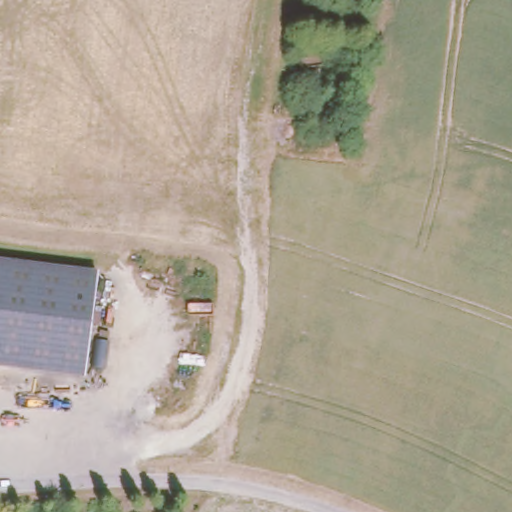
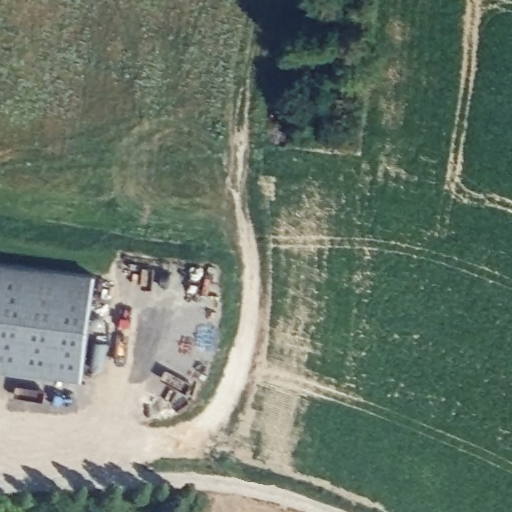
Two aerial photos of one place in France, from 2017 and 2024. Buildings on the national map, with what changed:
unchanged [(102,273),(86,373),(0,358),(0,255),(102,273)]

